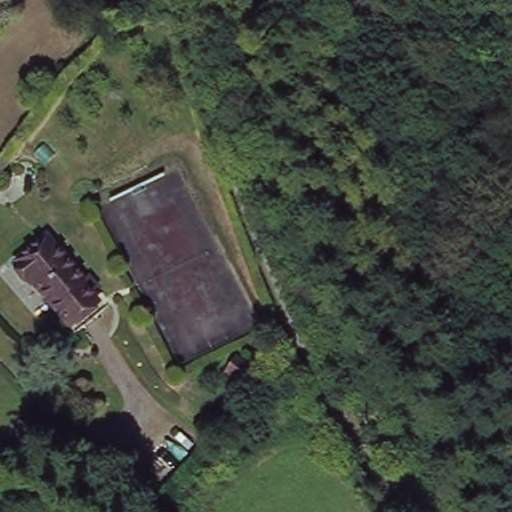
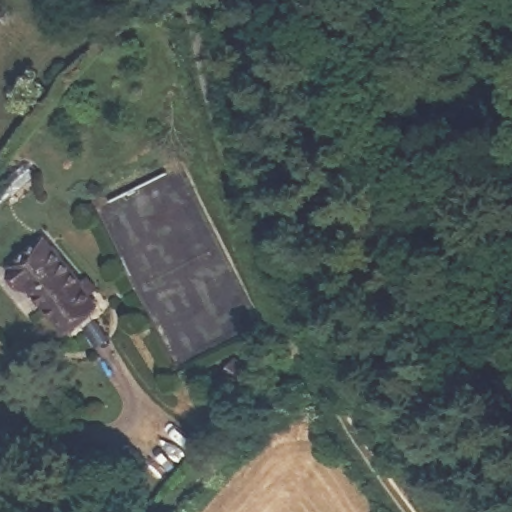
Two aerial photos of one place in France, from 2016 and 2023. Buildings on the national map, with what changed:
unchanged [(102,281),(90,291),(101,307),(75,329),(19,255),(50,230),(86,275),(92,272),(102,281)]
unchanged [(250,361),(264,372),(251,386),(240,374),(250,361)]

